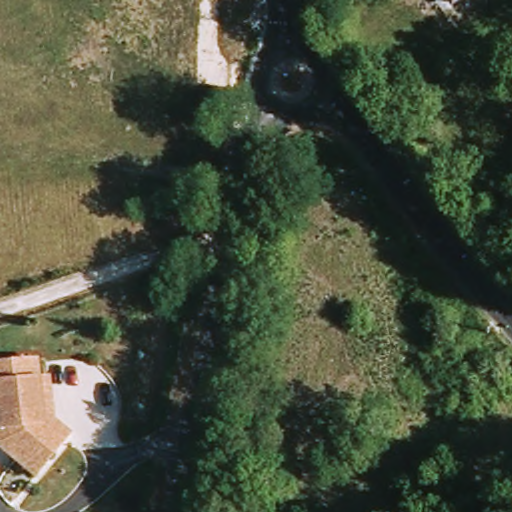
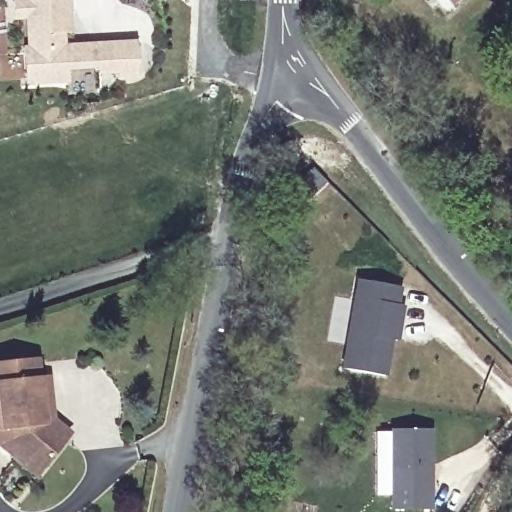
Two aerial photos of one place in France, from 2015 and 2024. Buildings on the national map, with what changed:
new [(74,34),(65,34),(65,44),(138,40),(140,80),(118,81),(117,74),(97,76),(97,69),(67,70),(69,84),(24,86),(22,47),(26,46),(25,21),(13,21),(12,0),(72,0),(74,34)]
unchanged [(451,5),(447,0),(457,0),(451,5)]
new [(390,341),(384,378),(342,370),(358,282),(400,289),(396,307),(402,308),(399,327),(396,342),(390,341)]
unchanged [(0,369),(35,365),(38,384),(47,383),(52,425),(69,439),(63,446),(42,471),(34,481),(0,453),(0,369)]
new [(391,432),(431,432),(431,483),(427,487),(427,493),(431,492),(431,510),(391,510),(391,432)]

